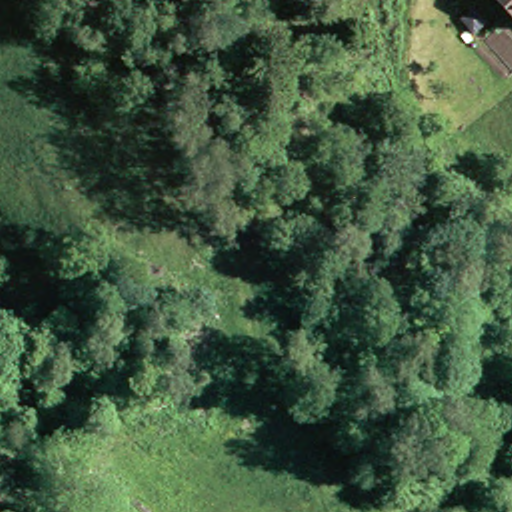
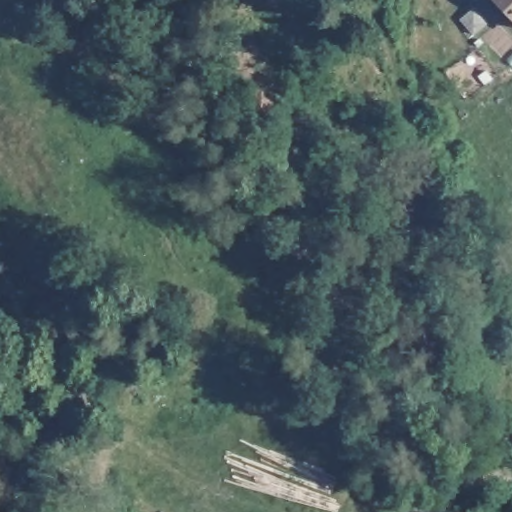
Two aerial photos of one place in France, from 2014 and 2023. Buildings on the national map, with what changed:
unchanged [(503,0),(512,0),(512,10),(503,0)]

